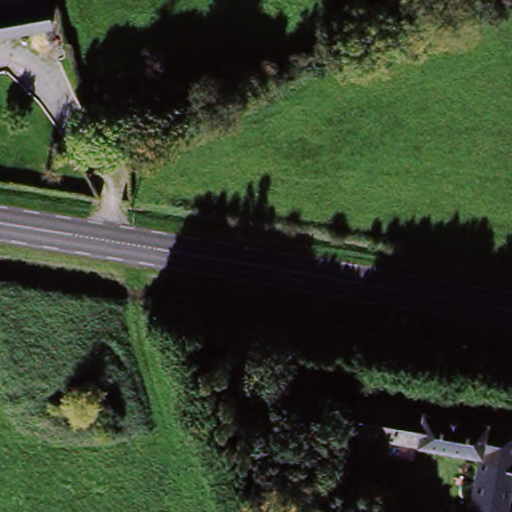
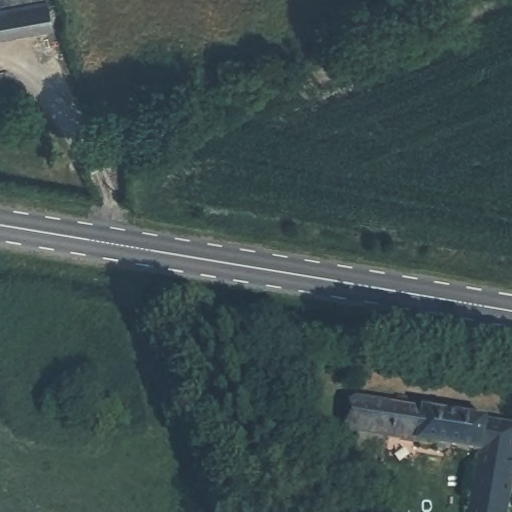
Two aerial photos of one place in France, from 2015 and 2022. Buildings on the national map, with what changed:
unchanged [(26,0),(47,0),(51,23),(0,32),(0,5),(26,0)]
unchanged [(405,446),(352,437),(358,404),(424,416),(419,449),(405,446)]
unchanged [(479,459),(419,449),(424,416),(485,427),(479,459)]
unchanged [(470,512),(479,459),(485,427),(512,431),(512,501),(510,512),(470,512)]

